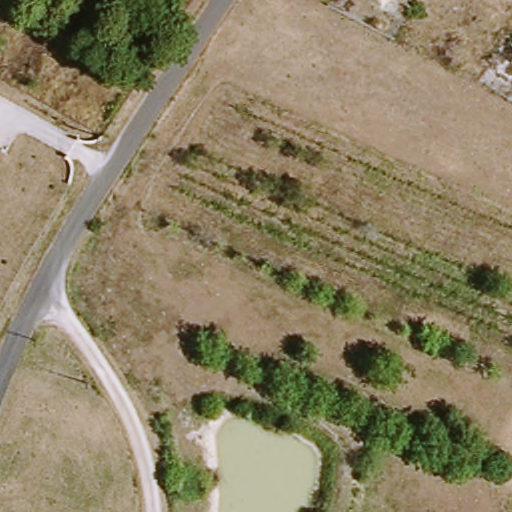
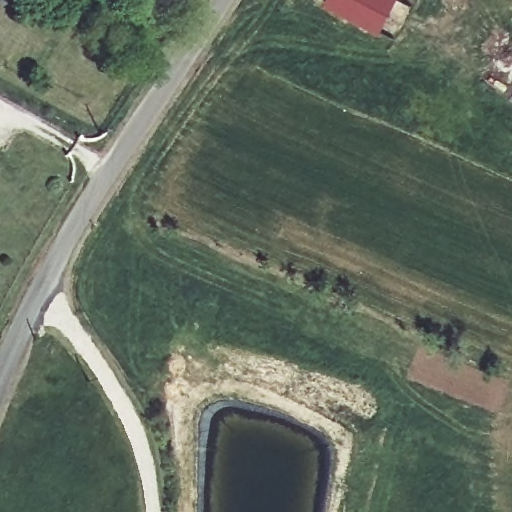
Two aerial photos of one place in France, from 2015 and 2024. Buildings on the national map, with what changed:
new [(384,32),(328,4),(329,0),(401,0),(384,32)]

